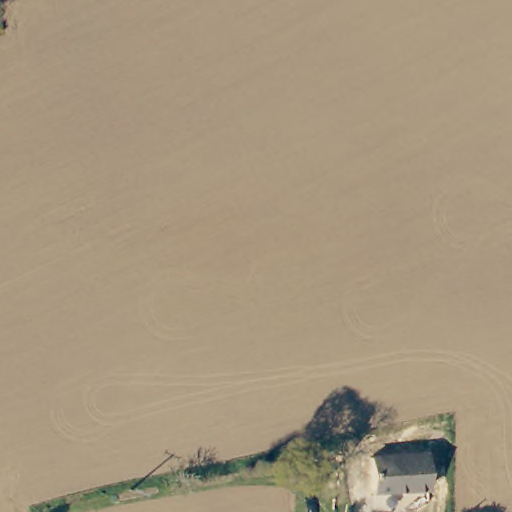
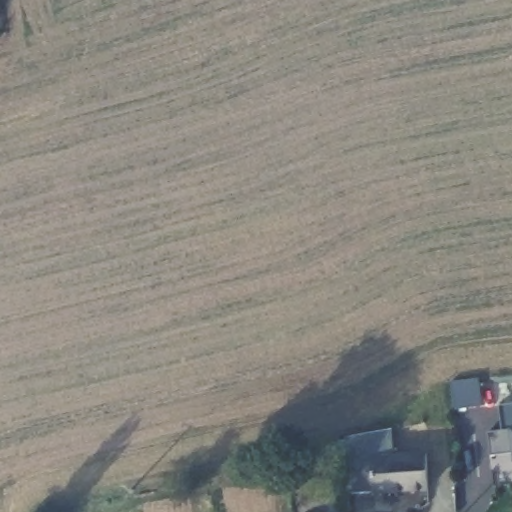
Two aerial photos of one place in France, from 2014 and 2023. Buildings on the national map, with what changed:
new [(512,453),(491,455),(487,433),(501,431),(498,406),(512,405),(512,453)]
unchanged [(366,461),(432,456),(433,488),(368,490),(366,461)]

